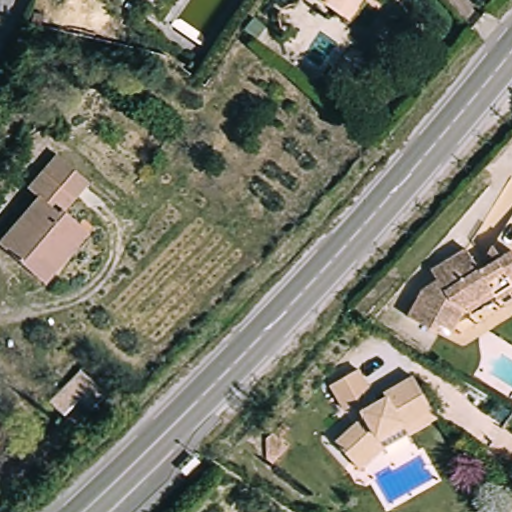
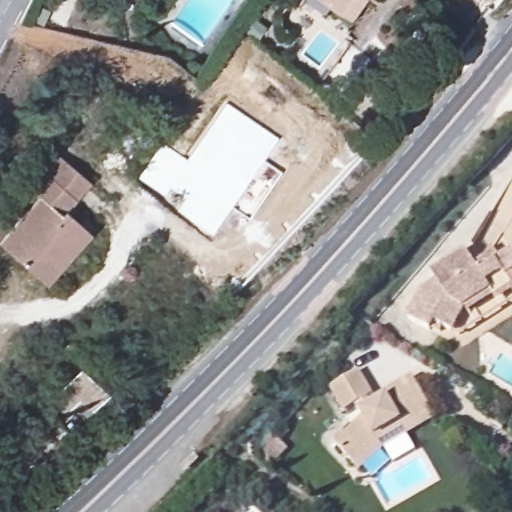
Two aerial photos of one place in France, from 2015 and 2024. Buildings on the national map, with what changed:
unchanged [(348,22),(316,0),(363,0),(348,22)]
new [(278,136),(263,158),(280,170),(249,216),(232,204),(211,234),(138,183),(166,143),(188,159),(227,101),(278,136)]
unchanged [(58,265),(45,280),(0,240),(0,238),(39,194),(28,184),(58,150),(90,178),(65,207),(82,222),(89,229),(58,265)]
unchanged [(480,252),(487,241),(495,254),(507,245),(512,254),(512,294),(507,286),(491,296),(485,285),(457,303),(446,326),(430,317),(425,325),(402,312),(416,285),(431,275),(425,266),(460,244),(470,259),(480,252)]
unchanged [(354,460),(334,438),(363,411),(356,399),(344,406),(329,380),(358,364),(377,397),(385,393),(382,389),(412,371),(429,400),(436,412),(408,429),(383,443),(359,465),(354,460)]
unchanged [(74,370),(103,395),(87,410),(76,399),(60,414),(45,400),(74,370)]
unchanged [(271,463),(266,459),(265,440),(272,433),(287,447),(271,463)]
unchanged [(266,512),(244,512),(258,501),(266,512)]

